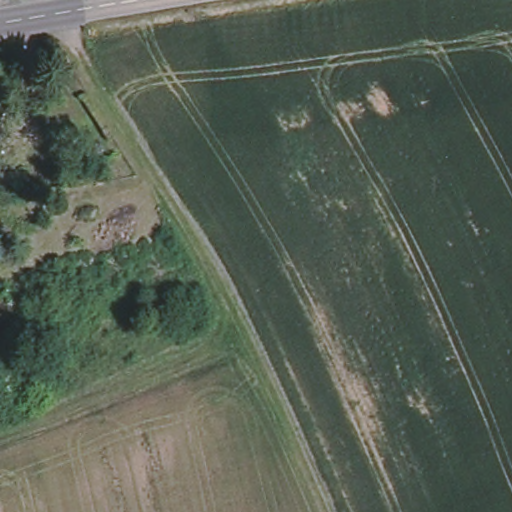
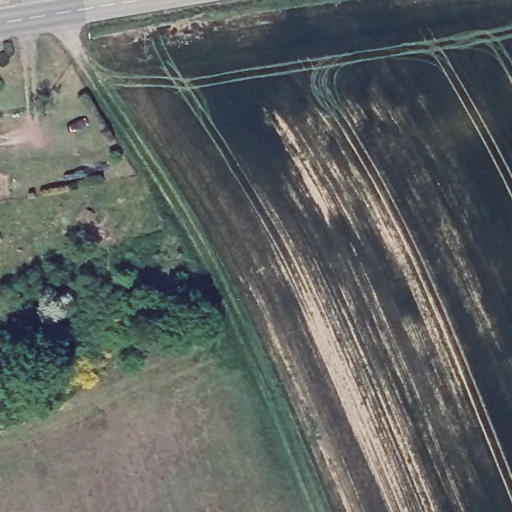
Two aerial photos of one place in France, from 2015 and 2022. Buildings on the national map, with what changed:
unchanged [(11,144),(0,146),(0,133),(9,131),(11,144)]

